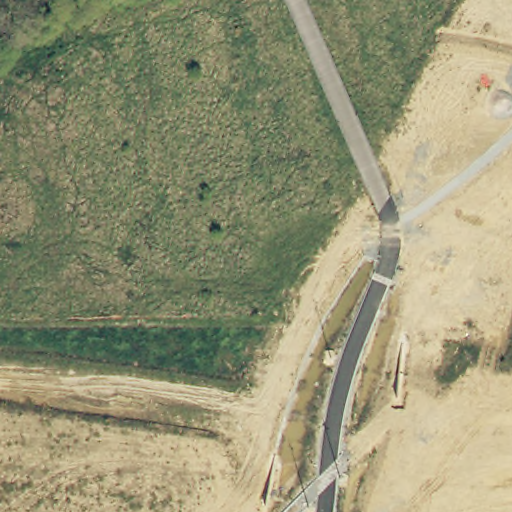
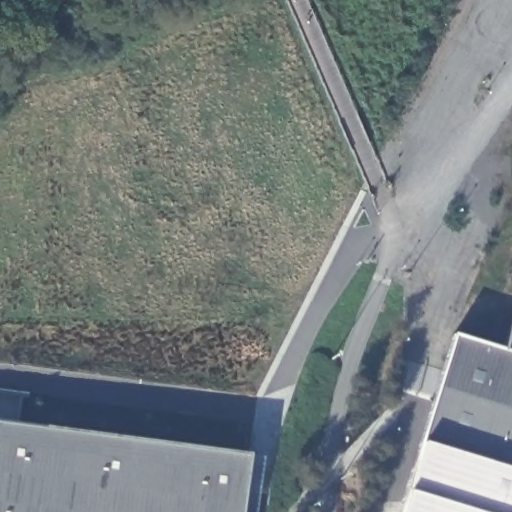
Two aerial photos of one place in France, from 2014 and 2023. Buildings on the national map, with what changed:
new [(510,327),(512,328),(512,512),(398,512),(453,338),(502,354),(510,327)]
new [(239,512),(0,512),(0,426),(246,458),(239,512)]

